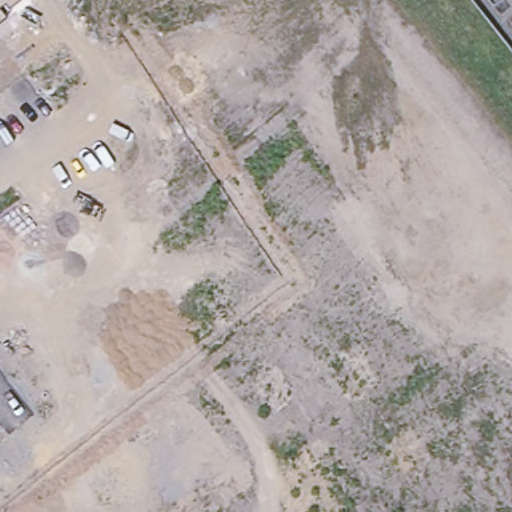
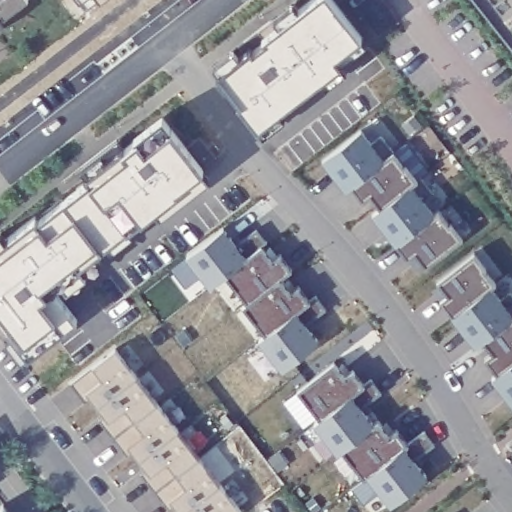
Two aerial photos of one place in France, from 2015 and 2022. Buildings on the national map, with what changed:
unchanged [(6,14),(1,9),(0,10),(0,0),(23,0),(6,14)]
new [(85,7),(80,0),(96,0),(85,7)]
new [(336,57),(341,64),(258,129),(238,105),(241,102),(220,76),(265,42),(258,32),(294,3),(299,10),(312,0),(333,0),(362,37),(336,57)]
unchanged [(0,25),(0,21),(2,24),(0,25)]
new [(213,66),(233,50),(239,57),(251,48),(253,51),(220,76),(213,66)]
new [(279,111),(286,119),(263,136),(258,129),(279,111)]
new [(38,220),(89,181),(86,177),(80,169),(117,141),(123,147),(124,149),(163,119),(202,169),(176,190),(178,192),(128,230),(126,228),(78,265),(80,267),(53,288),(76,318),(25,357),(0,324),(0,243),(35,216),(38,220)]
new [(416,255),(409,260),(394,242),(399,239),(387,224),(383,227),(373,215),(379,209),(369,196),(363,202),(351,187),(347,190),(336,176),(341,174),(327,156),(361,131),(371,144),(381,137),(405,167),(406,166),(418,181),(421,177),(435,194),(424,202),(433,214),(439,209),(449,224),(450,222),(463,237),(425,267),(416,255)]
new [(178,192),(176,190),(202,169),(209,178),(159,217),(154,210),(178,192)]
new [(223,227),(236,244),(256,229),(267,242),(262,246),(261,246),(210,286),(202,276),(186,288),(171,268),(186,257),(223,227)]
new [(224,274),(261,246),(272,260),(279,254),(292,270),(281,278),(246,303),(225,275),(224,274)]
new [(497,284),(492,288),(501,301),(510,292),(512,295),(512,395),(507,389),(503,392),(492,377),(497,372),(486,360),(492,353),(483,342),(476,347),(466,335),(471,331),(459,315),(454,318),(440,302),(448,296),(437,282),(474,253),(497,284)]
new [(243,306),(246,303),(281,278),(291,292),(299,286),(310,301),(265,335),(243,306)]
new [(259,340),(265,335),(310,301),(316,296),(326,310),(306,326),(319,342),(282,370),(259,340)]
new [(115,347),(137,375),(98,406),(86,392),(81,396),(70,382),(115,347)]
new [(297,391),(334,362),(345,376),(353,371),(364,385),(320,420),(319,419),(297,391)]
new [(103,423),(108,419),(98,406),(137,375),(158,402),(113,437),(103,423)]
new [(381,393),(361,408),(374,425),(337,453),(314,423),(319,419),(320,420),(371,380),(381,393)]
new [(139,460),(128,446),(123,450),(113,437),(158,402),(178,429),(139,460)]
new [(341,450),(374,425),(374,424),(378,421),(389,435),(397,429),(408,445),(368,476),(364,480),(341,450)]
new [(146,468),(149,473),(139,460),(178,429),(199,456),(154,491),(144,477),(140,472),(146,468)]
new [(368,476),(424,432),(434,445),(414,461),(427,477),(390,505),(368,476)]
new [(126,455),(123,450),(128,446),(133,451),(126,455)]
new [(164,504),(154,491),(199,456),(220,483),(183,512),(179,512),(173,505),(169,500),(164,504)]
new [(241,510),(238,512),(183,512),(220,483),(241,510)]
new [(0,512),(0,498),(11,512),(0,512)]
new [(168,509),(164,504),(169,500),(174,505),(168,509)]

